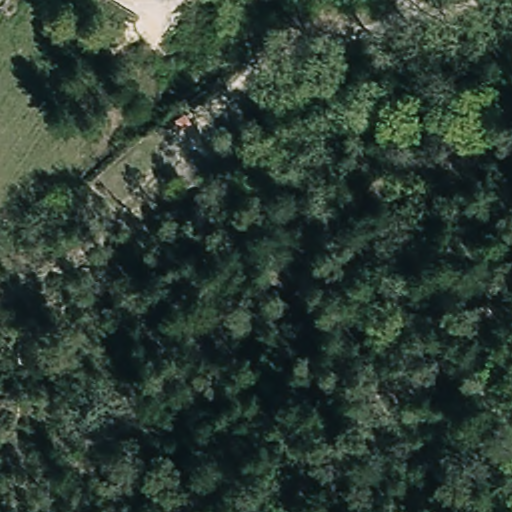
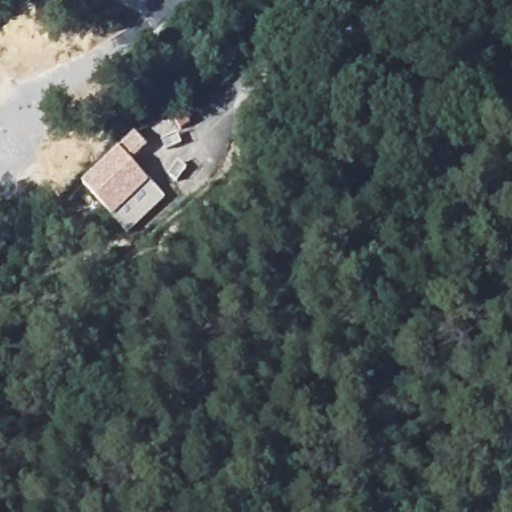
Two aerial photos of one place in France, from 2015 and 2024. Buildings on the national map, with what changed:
new [(112,216),(82,183),(119,149),(135,134),(148,149),(133,164),(150,181),(165,197),(128,232),(112,216)]

